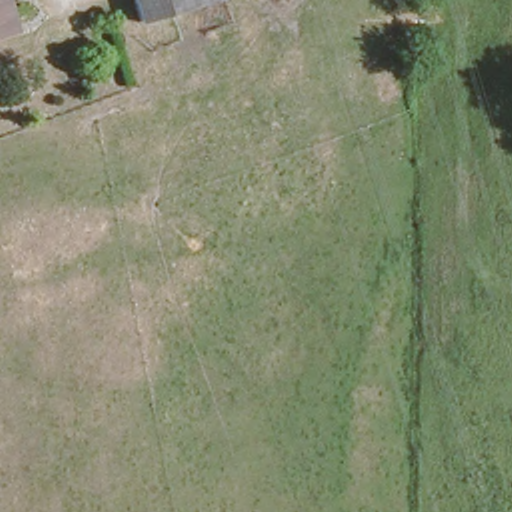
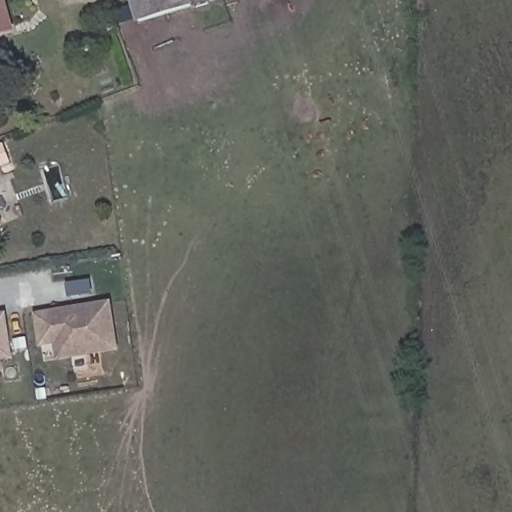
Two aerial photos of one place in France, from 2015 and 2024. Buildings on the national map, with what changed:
unchanged [(0,0),(4,0),(8,12),(0,14),(0,0)]
unchanged [(139,0),(190,0),(143,14),(139,0)]
unchanged [(13,28),(0,33),(0,14),(8,12),(13,28)]
new [(0,227),(0,215),(4,226),(0,227)]
new [(41,348),(35,314),(112,302),(121,352),(58,361),(55,346),(41,348)]
new [(0,314),(7,313),(15,360),(0,362),(0,314)]

